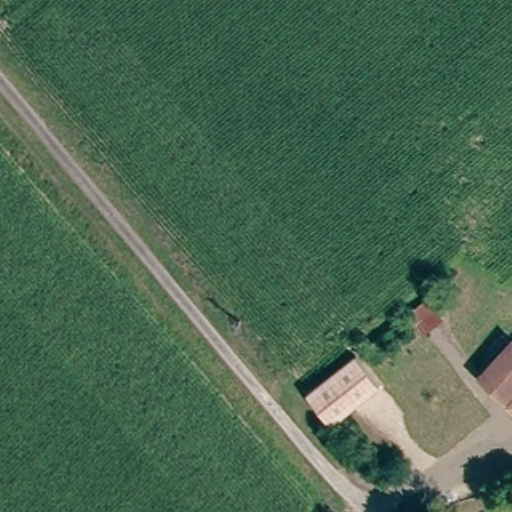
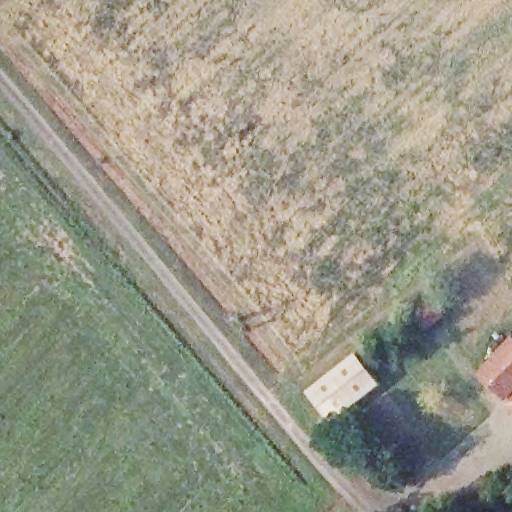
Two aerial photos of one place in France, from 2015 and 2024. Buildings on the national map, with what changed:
unchanged [(512,341),(512,387),(503,397),(478,375),(510,339),(512,341)]
unchanged [(374,379),(328,417),(307,390),(354,353),(374,379)]
unchanged [(508,402),(512,398),(512,406),(508,402)]

